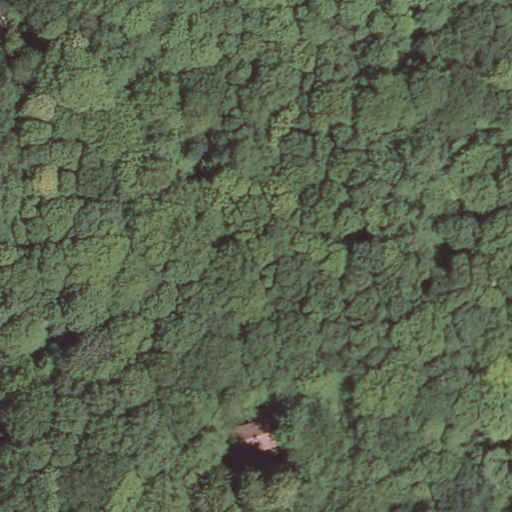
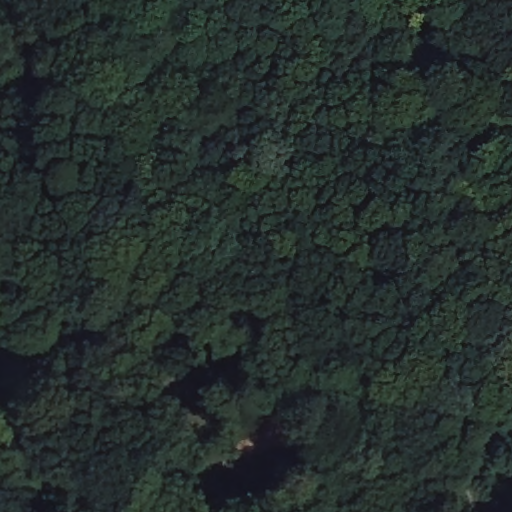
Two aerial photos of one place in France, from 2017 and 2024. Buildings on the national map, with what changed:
unchanged [(233,341),(273,341),(278,371),(238,376),(233,341)]

